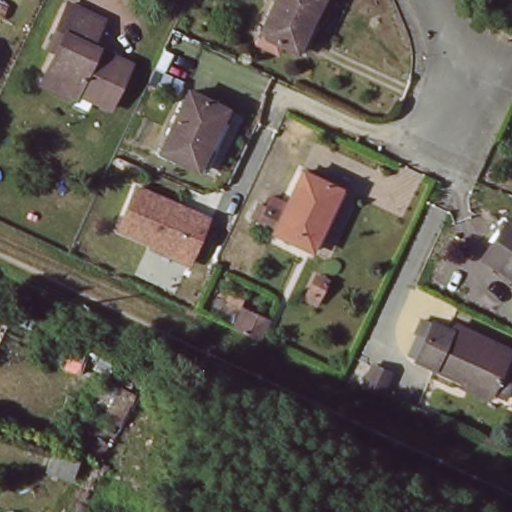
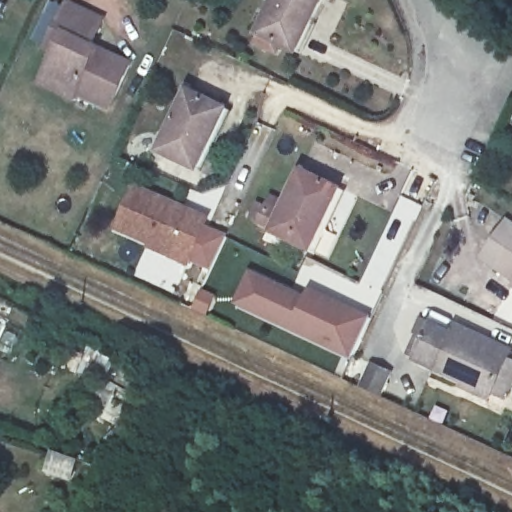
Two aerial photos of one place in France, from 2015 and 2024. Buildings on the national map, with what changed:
unchanged [(260,32),(276,0),(324,0),(298,51),(260,32)]
unchanged [(42,83),(48,71),(58,50),(48,45),(57,28),(70,2),(105,19),(93,44),(132,66),(111,109),(77,92),(74,99),(42,83)]
unchanged [(157,149),(188,86),(226,105),(195,168),(157,149)]
unchanged [(298,167),(337,188),(305,252),(267,231),(298,167)]
unchanged [(195,267),(118,233),(140,185),(218,217),(195,267)]
unchanged [(512,221),(512,279),(476,252),(503,215),(511,221),(512,221)]
new [(250,270),(305,295),(308,288),(370,316),(350,360),(234,305),(250,270)]
demolished [(228,323),(238,302),(261,313),(250,333),(228,323)]
unchanged [(460,378),(413,356),(425,333),(413,328),(419,315),(430,320),(431,318),(506,354),(505,357),(512,361),(512,387),(506,400),(489,391),(484,402),(455,388),(460,378)]
unchanged [(366,360),(383,367),(372,391),(355,383),(366,360)]
unchanged [(101,374),(111,381),(120,361),(146,373),(119,429),(86,409),(101,374)]

